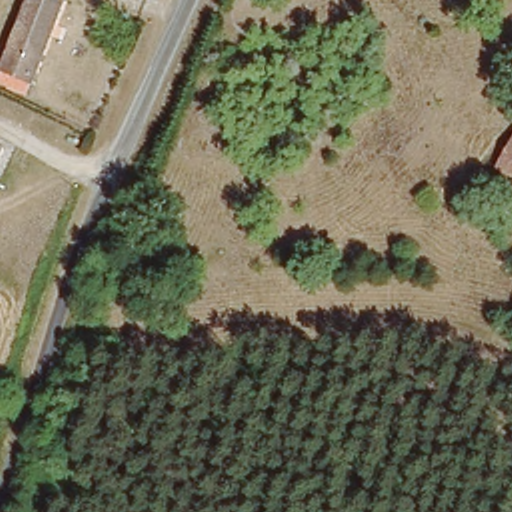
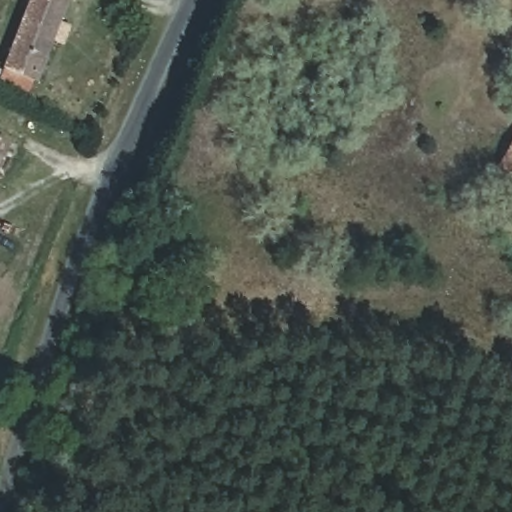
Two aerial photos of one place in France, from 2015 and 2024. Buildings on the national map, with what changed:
unchanged [(0,69),(27,0),(63,0),(31,81),(0,69)]
unchanged [(512,172),(477,153),(499,115),(512,122),(512,172)]
unchanged [(6,143),(0,156),(0,140),(6,143)]

